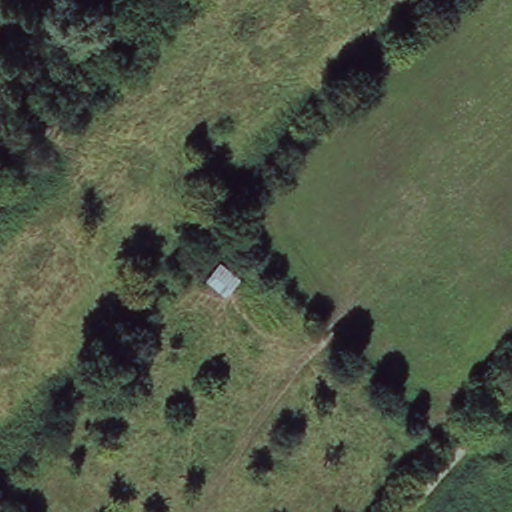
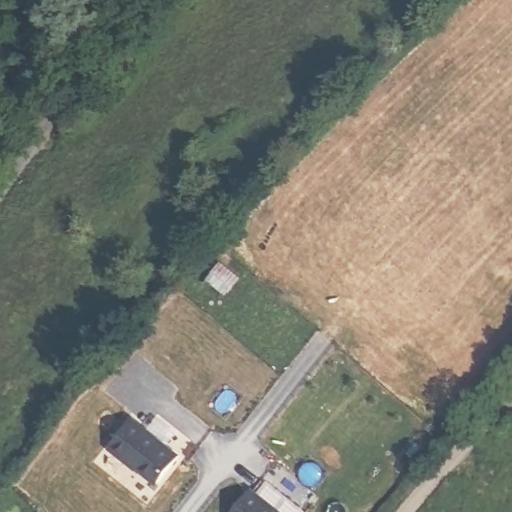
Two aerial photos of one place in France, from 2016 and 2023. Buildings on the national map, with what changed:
unchanged [(239,279),(225,296),(206,278),(217,263),(239,279)]
new [(135,415),(183,456),(161,486),(111,446),(135,415)]
new [(249,486),(282,512),(229,512),(249,486)]

